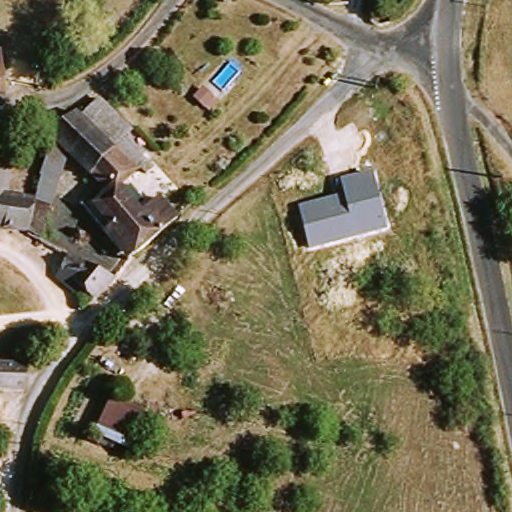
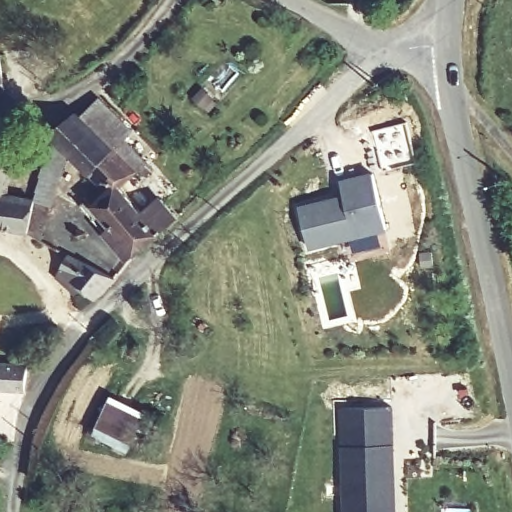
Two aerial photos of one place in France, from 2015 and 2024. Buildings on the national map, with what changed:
unchanged [(4,52),(10,90),(0,91),(0,53),(4,52)]
unchanged [(85,205),(92,198),(97,205),(112,191),(95,175),(72,154),(57,137),(58,132),(59,130),(80,112),(87,118),(105,100),(137,130),(128,139),(150,162),(157,169),(152,175),(145,168),(126,187),(148,212),(164,198),(182,219),(140,255),(133,260),(85,205)]
unchanged [(72,154),(56,200),(45,238),(33,232),(40,200),(57,137),(72,154)]
unchanged [(15,162),(12,195),(40,200),(33,232),(0,227),(0,160),(15,162)]
unchanged [(388,229),(307,250),(297,206),(344,195),(340,179),(372,170),(388,229)]
unchanged [(105,290),(94,299),(80,287),(75,293),(56,276),(67,254),(115,278),(105,290)]
unchanged [(0,416),(0,363),(32,365),(29,390),(4,389),(0,416)]
unchanged [(145,434),(135,452),(99,435),(117,396),(167,417),(160,438),(145,434)]
new [(396,512),(343,512),(340,409),(394,407),(396,512)]

